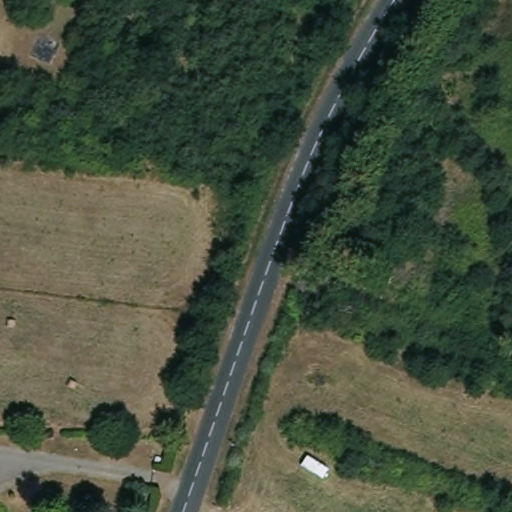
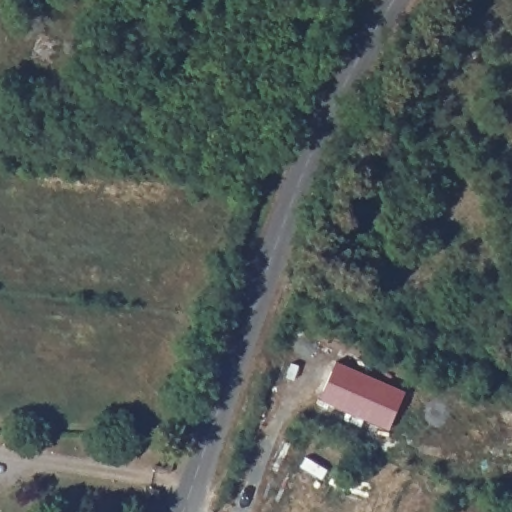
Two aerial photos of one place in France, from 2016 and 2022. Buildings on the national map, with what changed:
new [(405,390),(389,428),(321,398),(337,361),(405,390)]

